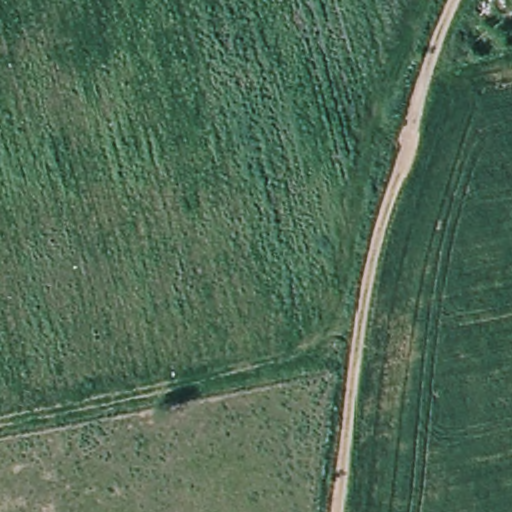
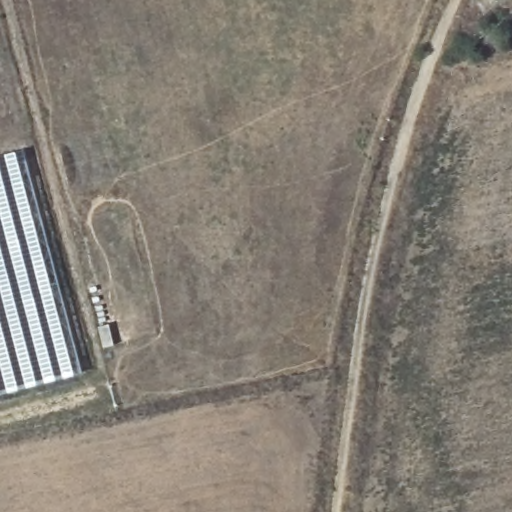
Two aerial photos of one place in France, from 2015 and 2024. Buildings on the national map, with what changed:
new [(79,373),(0,394),(0,156),(21,150),(79,373)]

